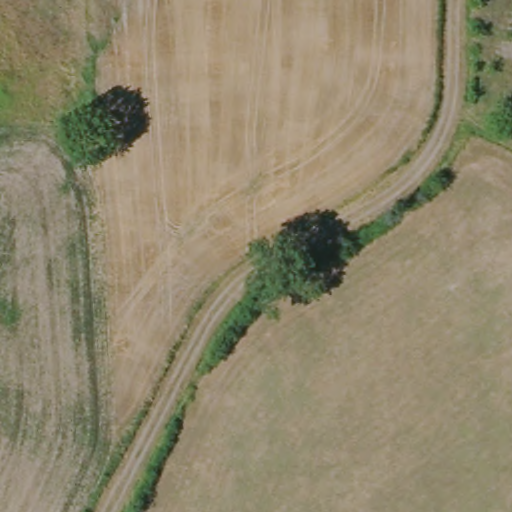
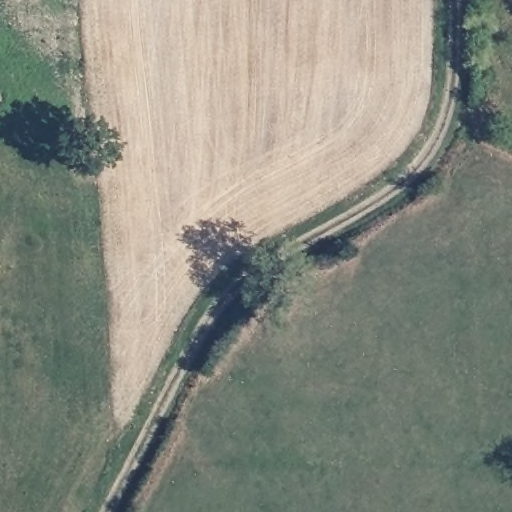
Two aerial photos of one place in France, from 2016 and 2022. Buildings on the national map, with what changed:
[]

